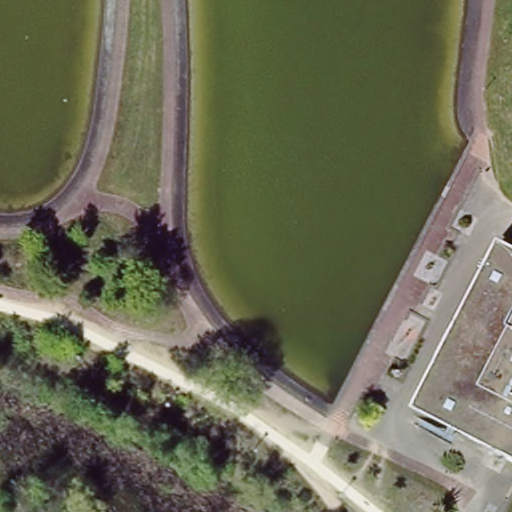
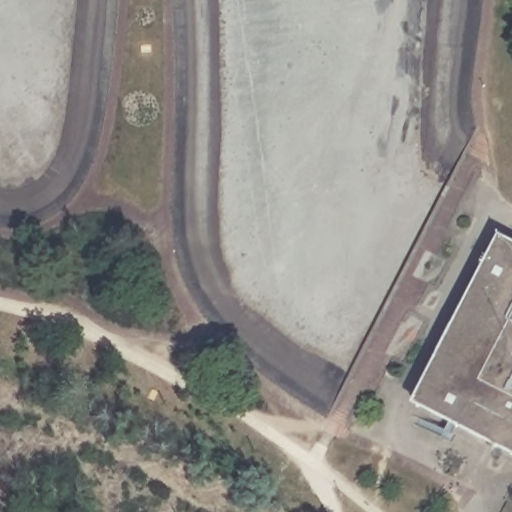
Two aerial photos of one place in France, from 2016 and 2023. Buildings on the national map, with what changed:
unchanged [(501,240),(512,246),(512,461),(412,408),(501,240)]

